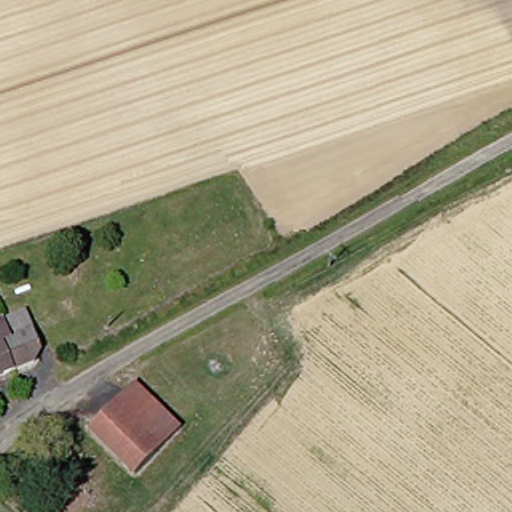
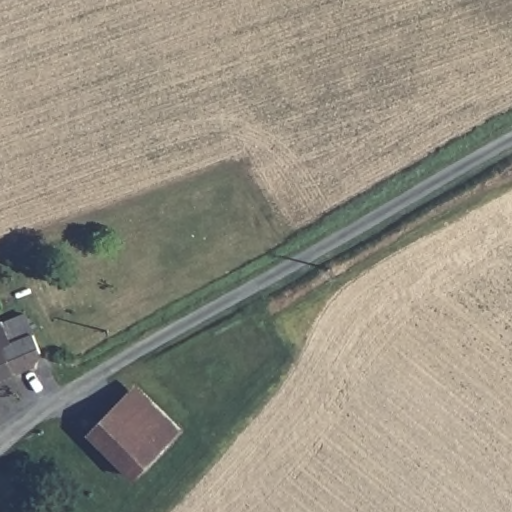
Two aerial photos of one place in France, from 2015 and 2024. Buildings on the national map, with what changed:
unchanged [(48,321),(45,316),(42,317),(40,313),(66,302),(70,312),(48,321)]
unchanged [(36,314),(51,354),(44,365),(0,382),(0,328),(36,314)]
unchanged [(145,473),(99,427),(124,402),(128,405),(146,388),(188,430),(145,473)]

